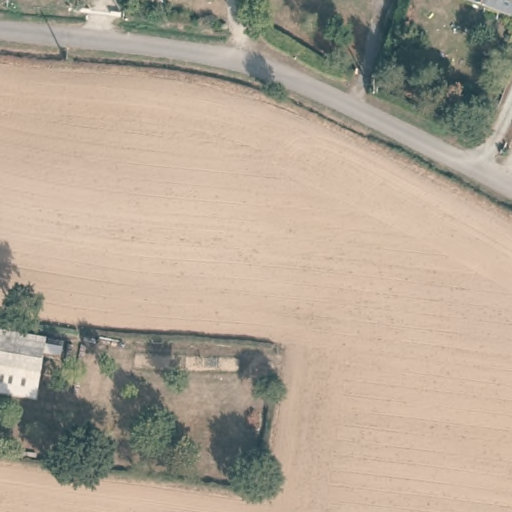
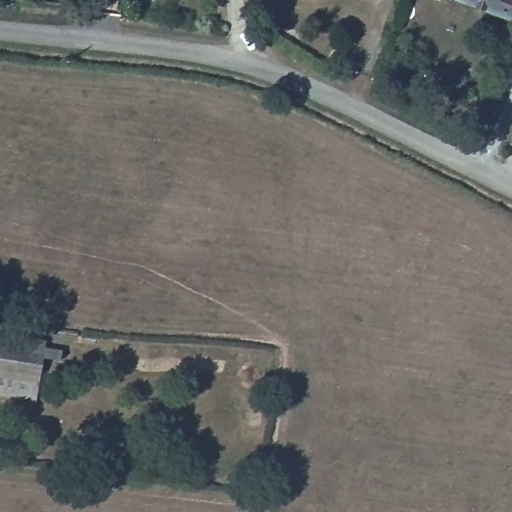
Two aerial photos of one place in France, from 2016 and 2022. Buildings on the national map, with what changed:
unchanged [(512,16),(466,0),(512,0),(512,16)]
unchanged [(0,372),(0,334),(50,341),(44,379),(0,372)]

